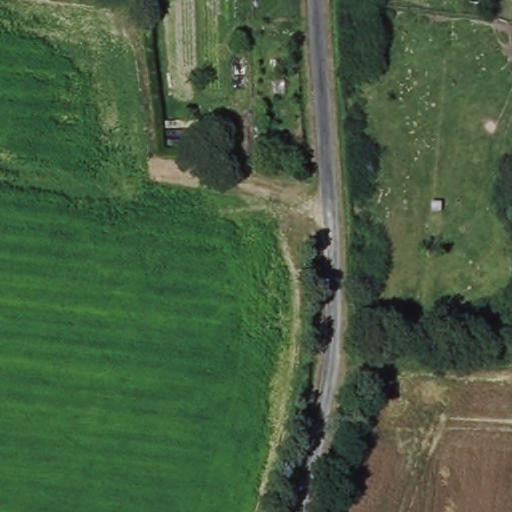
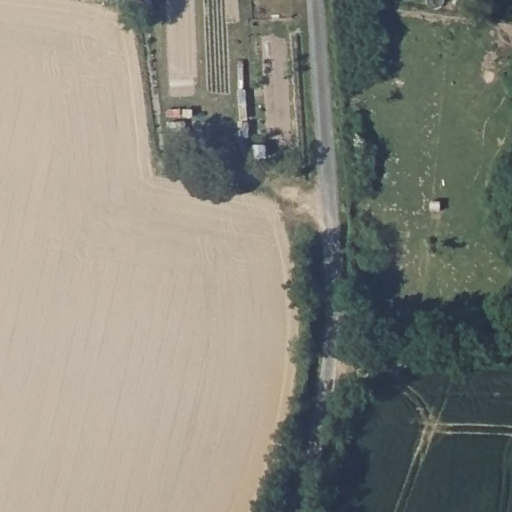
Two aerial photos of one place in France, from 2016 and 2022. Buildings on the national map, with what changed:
unchanged [(445,200),(443,212),(431,212),(432,199),(445,200)]

